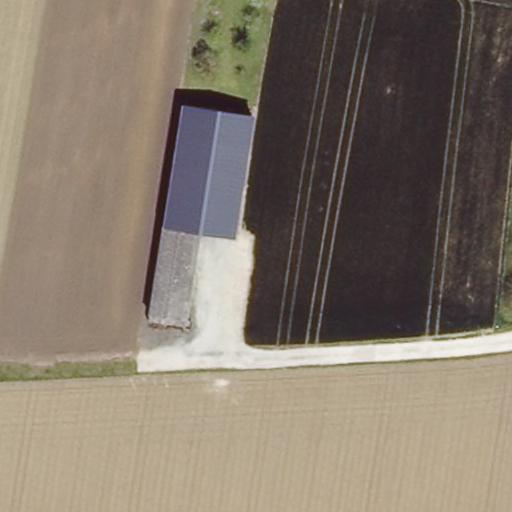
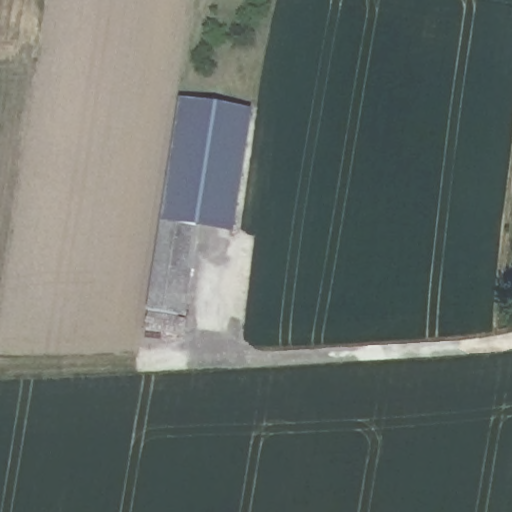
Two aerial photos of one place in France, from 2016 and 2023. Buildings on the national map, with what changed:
unchanged [(251,129),(232,249),(195,243),(162,238),(180,118),(251,129)]
unchanged [(181,331),(149,326),(162,238),(195,243),(181,331)]

